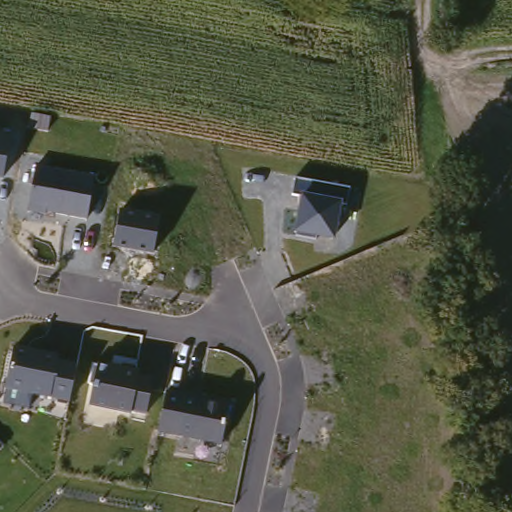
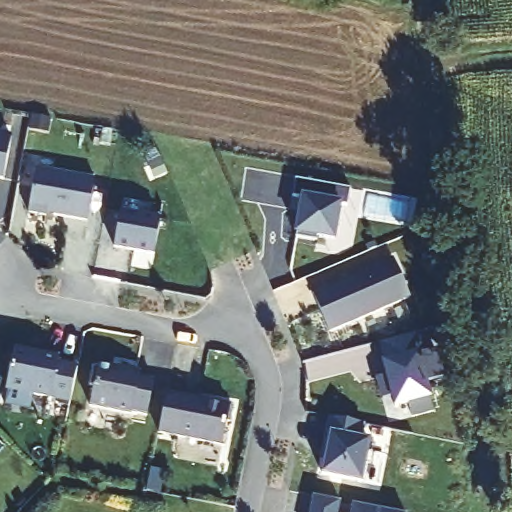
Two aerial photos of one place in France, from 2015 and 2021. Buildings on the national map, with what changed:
unchanged [(2,177),(0,177),(0,140),(9,142),(2,177)]
unchanged [(87,219),(28,208),(35,165),(94,175),(87,219)]
unchanged [(351,204),(341,203),(336,239),(293,233),(299,195),(291,194),(294,178),(353,189),(351,204)]
unchanged [(153,254),(112,248),(117,211),(158,217),(153,254)]
new [(392,254),(409,294),(329,330),(312,289),(392,254)]
new [(381,343),(420,334),(424,355),(439,352),(445,377),(425,380),(432,411),(412,416),(409,403),(395,406),(392,394),(382,396),(378,377),(388,375),(381,343)]
unchanged [(68,400),(32,395),(29,409),(2,403),(13,349),(58,357),(56,363),(76,366),(68,400)]
unchanged [(146,416),(88,406),(96,368),(153,378),(146,416)]
unchanged [(221,443),(156,433),(164,392),(229,404),(221,443)]
new [(364,424),(360,438),(368,439),(361,482),(323,473),(327,444),(323,443),(329,416),(364,424)]

